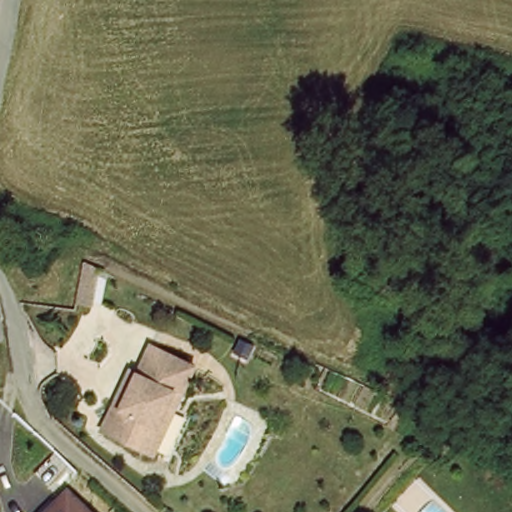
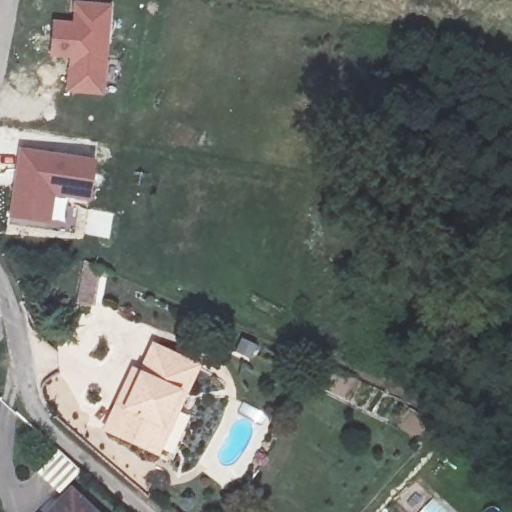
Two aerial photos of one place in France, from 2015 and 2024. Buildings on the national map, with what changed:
new [(67,92),(70,59),(50,57),(53,21),(72,22),(75,0),(113,5),(104,96),(67,92)]
new [(97,160),(90,202),(55,197),(50,225),(9,220),(20,149),(97,160)]
unchanged [(89,272),(86,296),(72,295),(76,270),(89,272)]
unchanged [(159,455),(150,450),(137,443),(108,429),(112,421),(121,403),(127,390),(137,370),(145,374),(148,375),(162,347),(202,367),(188,395),(172,426),(159,455)]
unchanged [(67,485),(97,512),(43,512),(67,485)]

